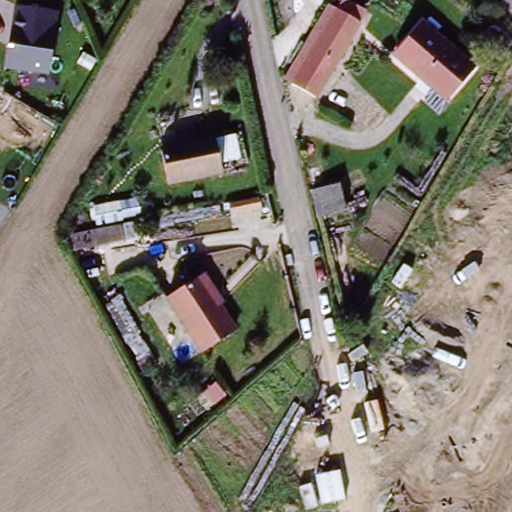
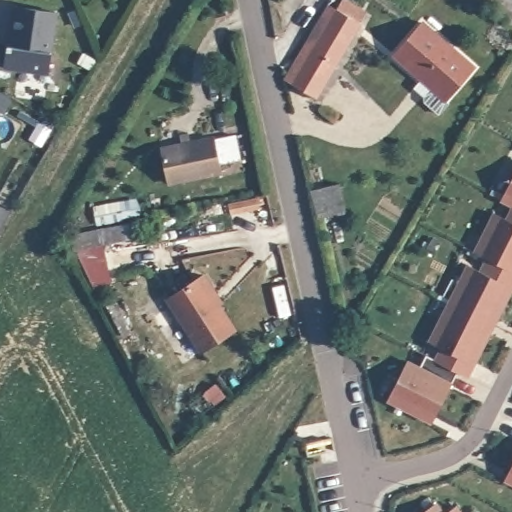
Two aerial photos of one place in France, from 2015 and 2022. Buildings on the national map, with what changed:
unchanged [(7,4),(55,10),(50,72),(0,67),(7,4)]
unchanged [(355,22),(310,99),(287,79),(330,7),(355,22)]
unchanged [(475,62),(442,102),(392,51),(424,17),(475,62)]
unchanged [(217,136),(236,132),(241,155),(222,159),(224,169),(169,180),(162,144),(182,140),(180,129),(189,128),(190,138),(217,133),(217,136)]
new [(501,201),(512,180),(512,207),(501,201)]
unchanged [(347,211),(318,217),(312,191),(341,184),(347,211)]
unchanged [(137,195),(142,214),(95,220),(93,202),(137,195)]
new [(458,373),(435,362),(440,351),(428,345),(448,306),(468,266),(481,273),(487,260),(475,253),(495,214),(507,220),(512,211),(512,290),(497,321),(493,328),(489,336),(467,378),(458,373)]
unchanged [(200,348),(169,295),(207,272),(218,291),(223,299),(219,302),(235,327),(200,348)]
new [(425,420),(387,402),(407,363),(420,369),(426,357),(435,362),(458,373),(436,417),(432,424),(425,420)]
new [(512,467),(512,485),(505,481),(508,475),(512,467)]
new [(441,512),(425,512),(435,504),(441,512)]
new [(458,512),(450,512),(455,508),(458,512)]

